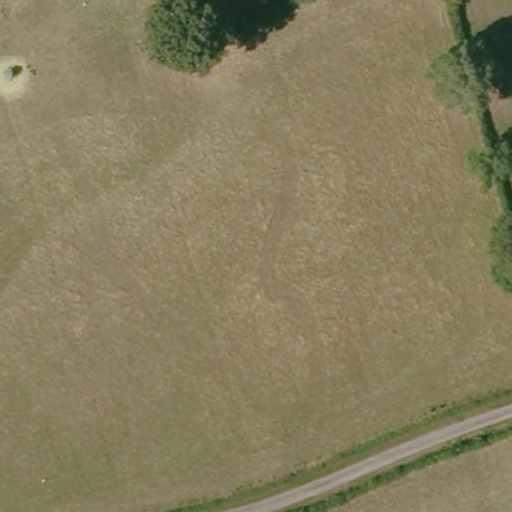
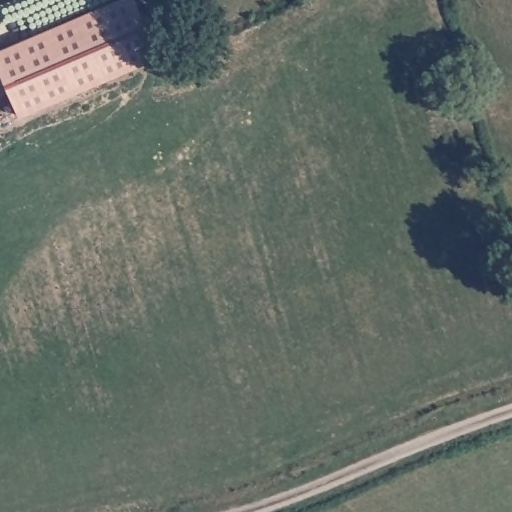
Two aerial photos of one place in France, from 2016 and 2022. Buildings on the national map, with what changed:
new [(139,0),(162,55),(23,108),(0,63),(0,44),(104,0),(139,0)]

